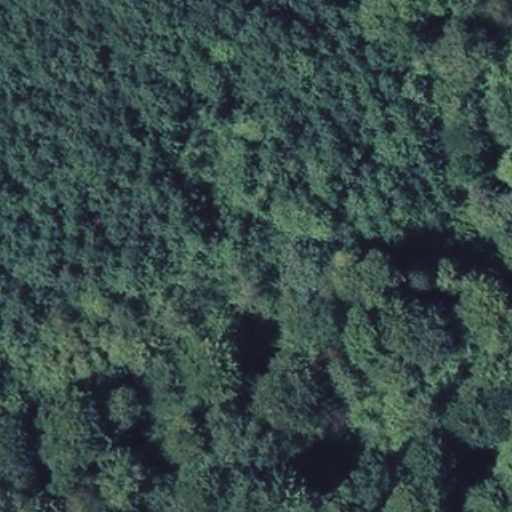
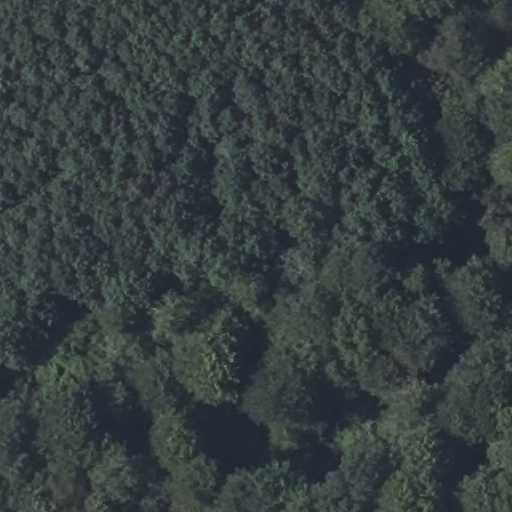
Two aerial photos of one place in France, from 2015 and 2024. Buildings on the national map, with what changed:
[]

